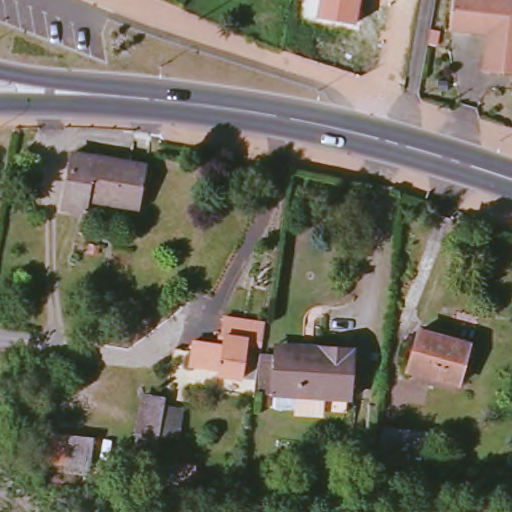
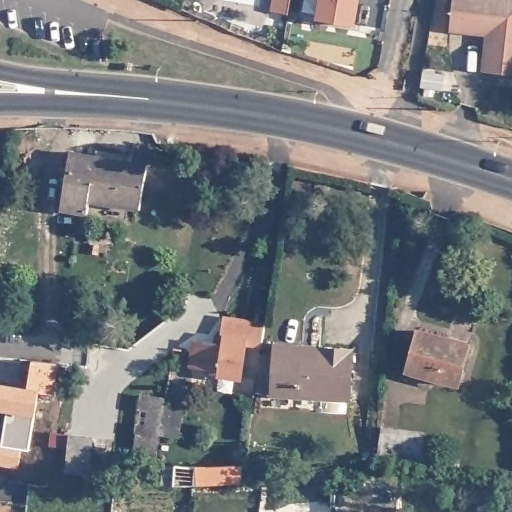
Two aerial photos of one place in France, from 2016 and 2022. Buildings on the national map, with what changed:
unchanged [(357,27),(314,19),(317,0),(362,0),(357,27)]
unchanged [(486,69),(490,30),(455,27),(457,0),(512,0),(512,70),(486,69)]
unchanged [(63,205),(73,149),(95,153),(88,201),(87,207),(63,205)]
unchanged [(95,153),(132,158),(131,163),(146,165),(138,216),(130,215),(131,209),(108,204),(107,210),(94,207),(95,201),(88,201),(95,153)]
unchanged [(106,299),(100,336),(77,333),(80,309),(65,307),(68,293),(106,299)]
unchanged [(264,344),(247,342),(242,376),(219,372),(219,368),(193,364),(196,337),(225,342),(226,333),(223,333),(225,315),(268,321),(264,344)]
unchanged [(467,382),(417,380),(417,371),(410,371),(410,362),(418,362),(421,337),(470,341),(467,382)]
unchanged [(326,353),(327,345),(358,347),(353,395),(305,391),(277,387),(258,383),(264,346),(281,348),(294,351),(326,353)]
new [(54,394),(39,393),(35,417),(30,450),(22,448),(19,467),(0,464),(0,442),(2,442),(8,411),(0,409),(0,382),(28,387),(33,360),(60,363),(54,394)]
unchanged [(168,398),(167,402),(186,409),(182,438),(163,433),(158,471),(133,467),(142,397),(168,398)]
unchanged [(439,438),(430,465),(377,462),(381,433),(439,438)]
unchanged [(94,443),(87,481),(69,478),(71,464),(49,460),(52,434),(73,438),(94,443)]
unchanged [(183,465),(201,464),(201,482),(182,483),(183,465)]

